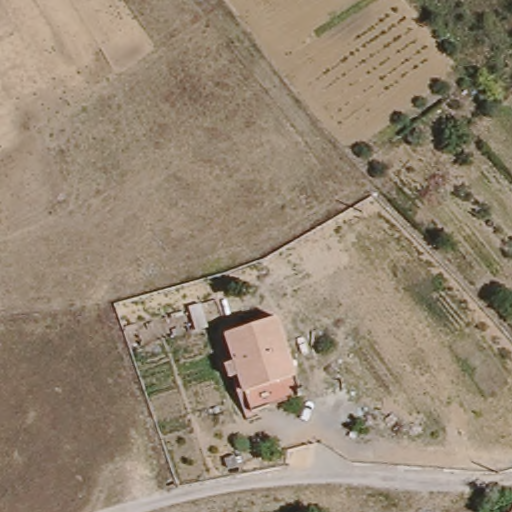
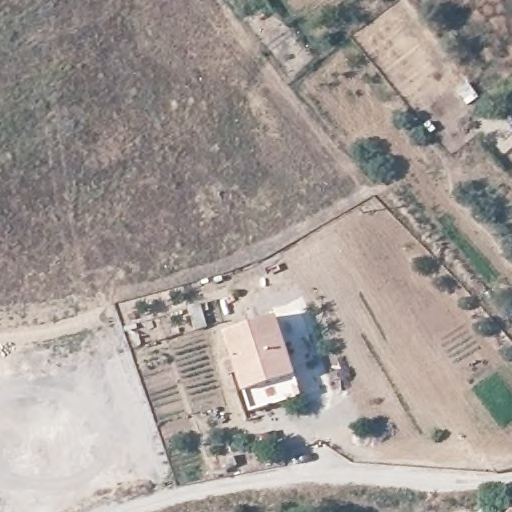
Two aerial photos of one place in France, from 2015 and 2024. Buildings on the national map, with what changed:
unchanged [(233,332),(284,316),(307,392),(253,411),(242,378),(239,378),(233,357),(241,356),(233,332)]
unchanged [(215,462),(225,459),(228,466),(218,471),(215,462)]

